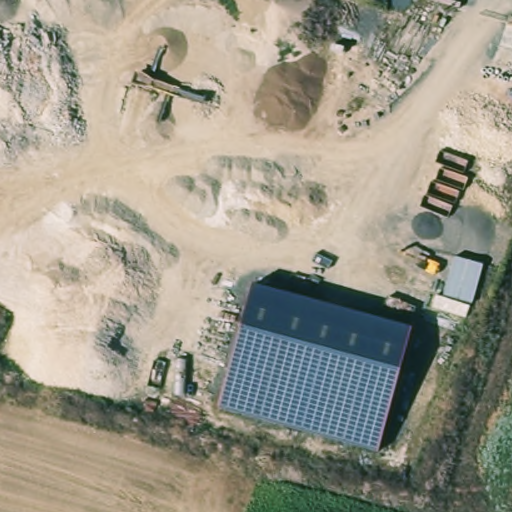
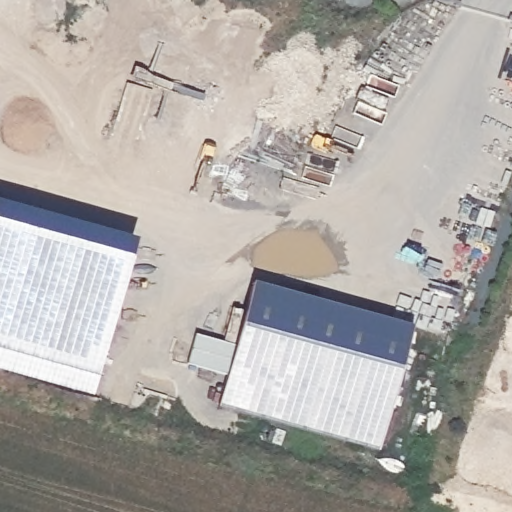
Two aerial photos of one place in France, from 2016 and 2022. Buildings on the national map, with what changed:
new [(90,396),(0,371),(0,203),(133,243),(90,396)]
unchanged [(378,451),(219,406),(252,285),(411,329),(378,451)]

